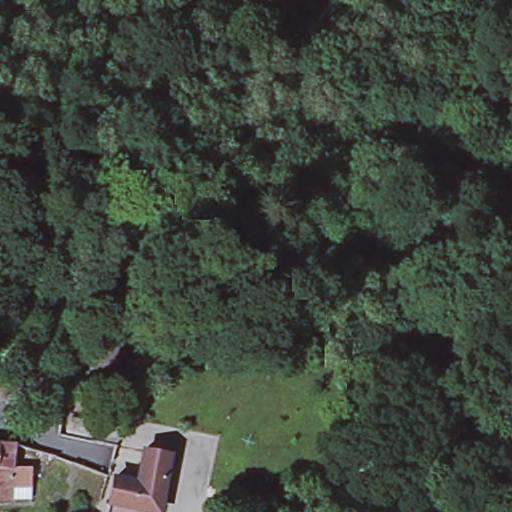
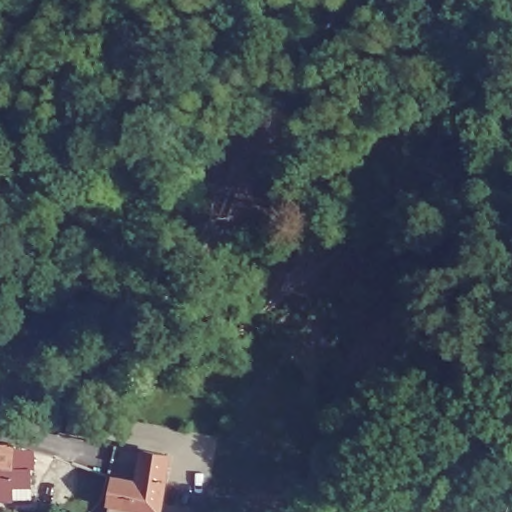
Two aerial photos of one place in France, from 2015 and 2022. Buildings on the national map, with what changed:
unchanged [(32,504),(0,502),(0,441),(4,441),(17,442),(15,467),(32,469),(32,504)]
unchanged [(138,480),(142,455),(143,449),(167,454),(160,498),(158,512),(108,512),(110,500),(115,476),(138,480)]

